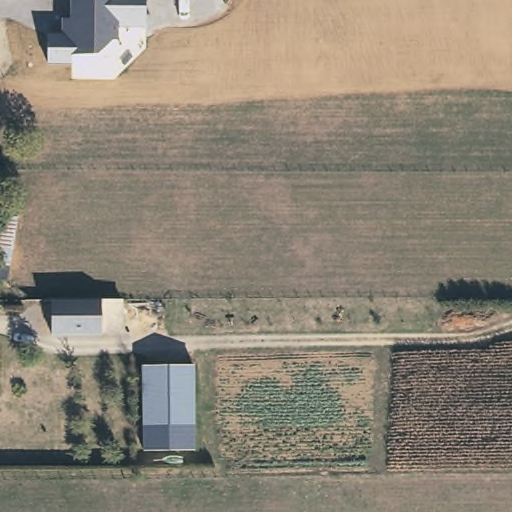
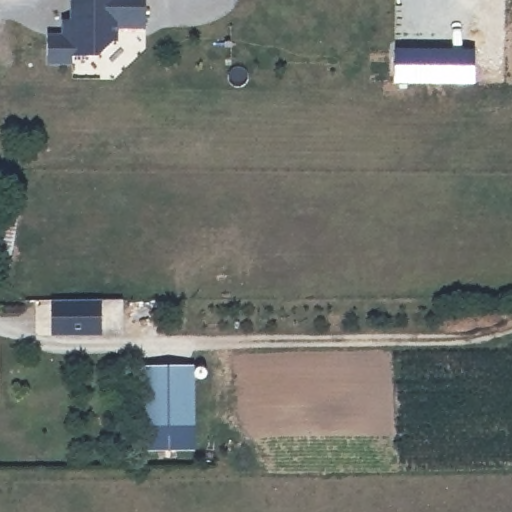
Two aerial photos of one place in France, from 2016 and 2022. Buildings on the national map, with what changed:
unchanged [(71,21),(71,0),(146,0),(146,28),(117,28),(117,41),(112,42),(96,57),(72,59),(72,67),(47,66),(46,35),(62,35),(61,22),(71,21)]
new [(394,83),(395,47),(474,48),(474,83),(394,83)]
unchanged [(102,295),(125,298),(124,330),(102,330),(52,331),(52,296),(83,295),(102,295)]
unchanged [(141,365),(193,365),(194,424),(142,423),(141,365)]
unchanged [(194,424),(193,451),(146,451),(142,423),(194,424)]

